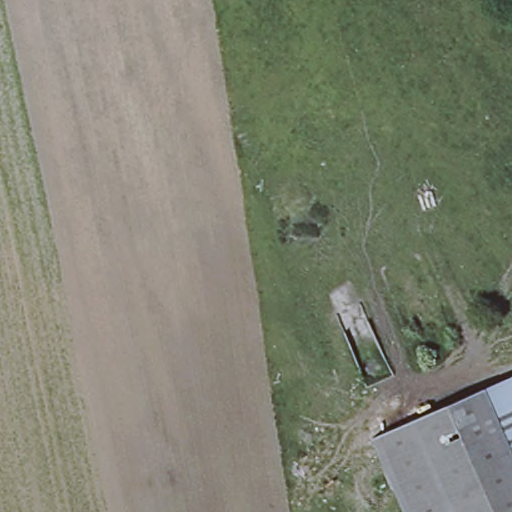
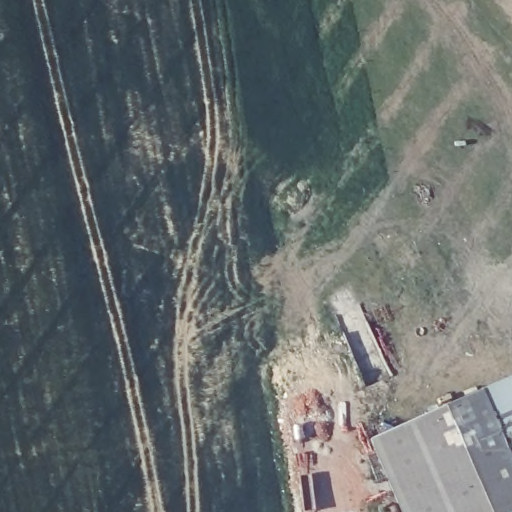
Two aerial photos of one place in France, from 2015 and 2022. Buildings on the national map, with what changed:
unchanged [(402,512),(370,435),(512,376),(512,512),(402,512)]

